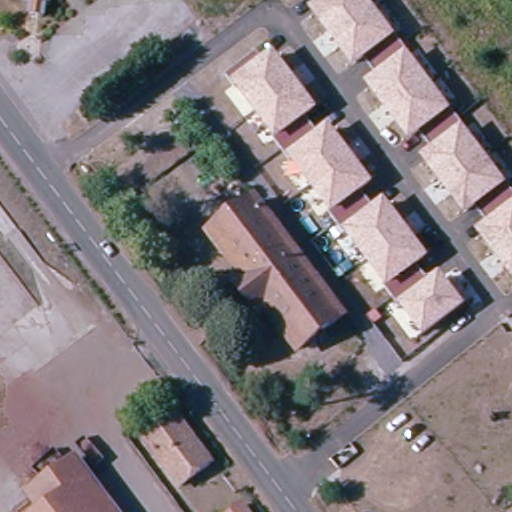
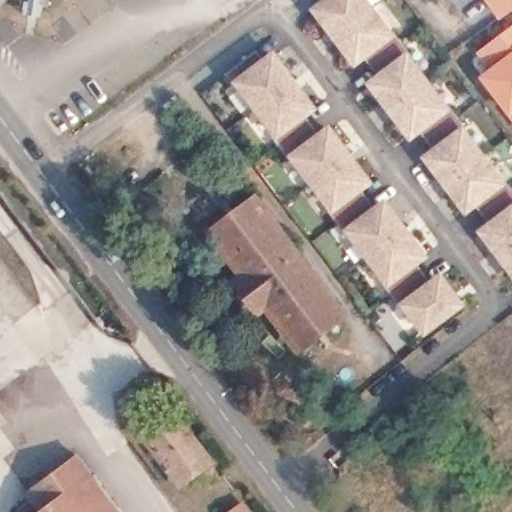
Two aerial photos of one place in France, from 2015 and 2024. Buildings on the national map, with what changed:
demolished [(33,13),(30,24),(13,20),(15,9),(10,9),(11,4),(1,3),(0,2),(0,0),(46,0),(39,5),(37,14),(33,13)]
unchanged [(367,0),(372,7),(334,37),(313,9),(325,0),(367,0)]
new [(486,0),(512,0),(512,17),(503,24),(486,0)]
unchanged [(364,53),(352,61),(334,37),(372,7),(391,33),(393,31),(402,44),(400,45),(373,65),(364,53)]
new [(512,24),(512,121),(478,75),(485,69),(474,51),(512,24)]
unchanged [(371,85),(382,78),(373,65),(400,45),(402,44),(411,55),(409,56),(428,83),(390,111),(371,85)]
unchanged [(232,86),(231,88),(221,74),(254,50),(264,65),(273,59),(290,81),(251,110),(232,86)]
unchanged [(270,137),(271,136),(251,110),(290,81),(309,108),(302,114),(311,126),(280,151),(270,137)]
unchanged [(419,129),(408,136),(390,111),(428,83),(447,107),(449,105),(457,118),(456,119),(427,140),(419,129)]
unchanged [(426,159),(436,153),(427,140),(456,119),(457,118),(466,130),(465,131),(484,156),(445,185),(426,159)]
unchanged [(289,160),(288,161),(280,151),(311,126),(319,138),(327,132),(346,156),(308,184),(289,160)]
unchanged [(326,212),(328,210),(308,184),(346,156),(365,183),(357,189),(367,200),(336,224),(326,212)]
unchanged [(474,204),(464,211),(445,185),(484,156),(503,182),(504,181),(512,191),(512,194),(482,216),(474,204)]
unchanged [(482,235),(491,228),(482,216),(512,194),(512,252),(501,260),(482,235)]
unchanged [(346,234),(344,236),(336,224),(367,200),(376,213),(383,207),(402,232),(365,259),(346,234)]
unchanged [(291,356),(260,314),(252,319),(228,288),(236,282),(204,239),(250,205),(337,320),(291,356)]
unchanged [(383,286),(385,285),(365,259),(402,232),(421,258),(414,264),(423,276),(392,298),(383,286)]
unchanged [(501,260),(512,252),(512,275),(501,260)]
unchanged [(423,334),(403,309),(401,309),(392,298),(423,276),(431,288),(439,282),(459,308),(423,334)]
unchanged [(206,469),(173,493),(136,443),(169,419),(206,469)]
unchanged [(22,499),(70,463),(107,512),(32,512),(22,499)]
unchanged [(236,512),(234,512),(235,511),(236,512)]

